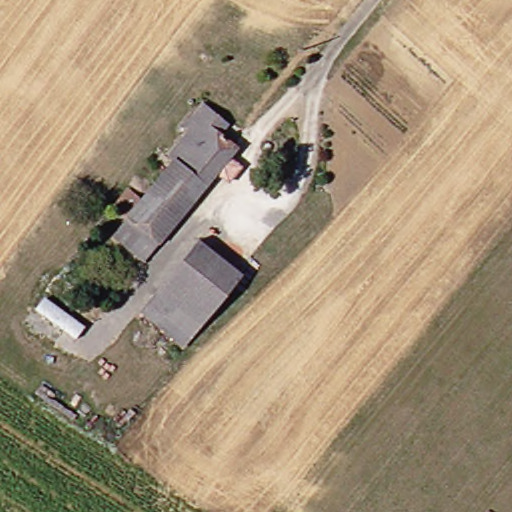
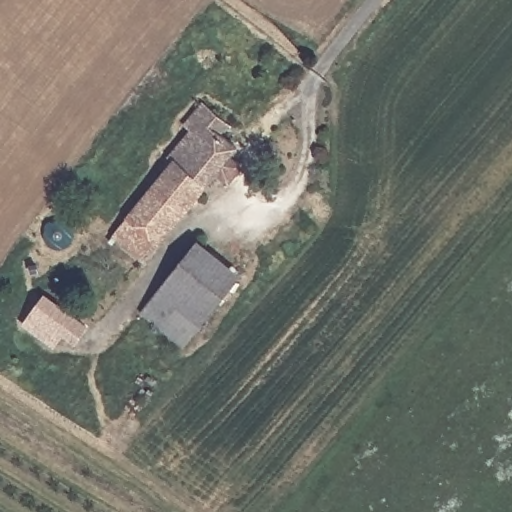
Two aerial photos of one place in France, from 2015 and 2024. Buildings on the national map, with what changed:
unchanged [(110,240),(120,227),(106,214),(124,194),(136,205),(170,168),(165,161),(186,137),(180,131),(214,95),(226,106),(210,122),(216,129),(206,140),(230,160),(149,253),(137,265),(110,240)]
unchanged [(239,280),(186,350),(144,318),(198,247),(239,280)]
new [(64,336),(55,348),(23,325),(46,293),(91,326),(76,345),(64,336)]

